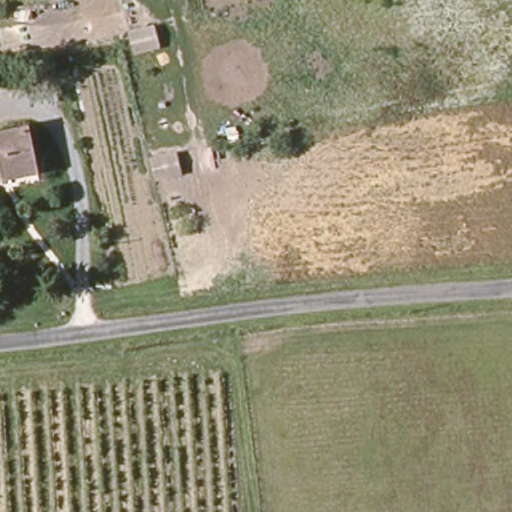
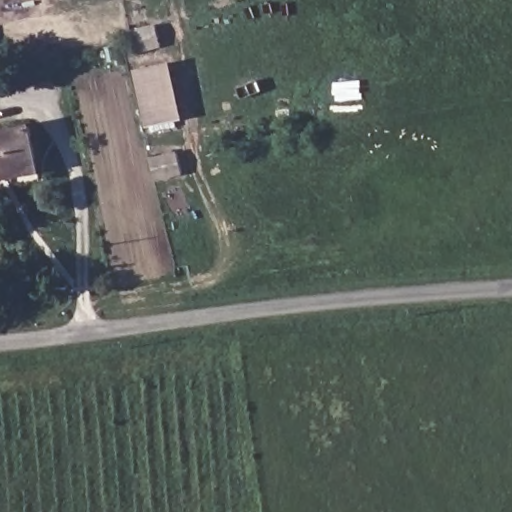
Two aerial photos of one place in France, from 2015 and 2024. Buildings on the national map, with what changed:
new [(172,61),(185,120),(148,126),(135,70),(172,61)]
unchanged [(38,166),(0,172),(0,128),(29,123),(38,166)]

